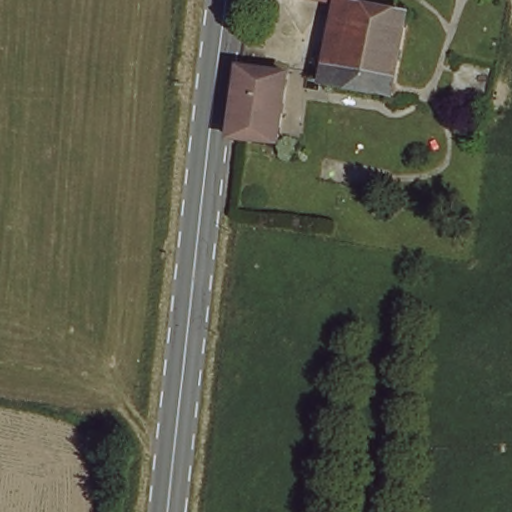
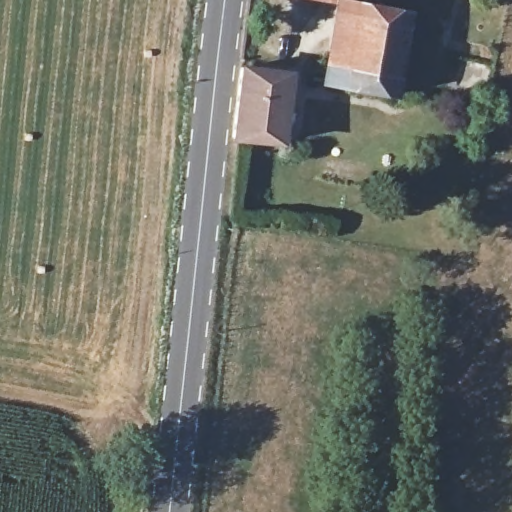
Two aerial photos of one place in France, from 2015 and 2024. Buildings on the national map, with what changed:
unchanged [(395,88),(319,76),(333,0),(342,0),(351,1),(407,9),(395,88)]
unchanged [(351,0),(351,1),(344,0),(351,0)]
unchanged [(280,71),(270,141),(229,136),(237,65),(280,71)]

